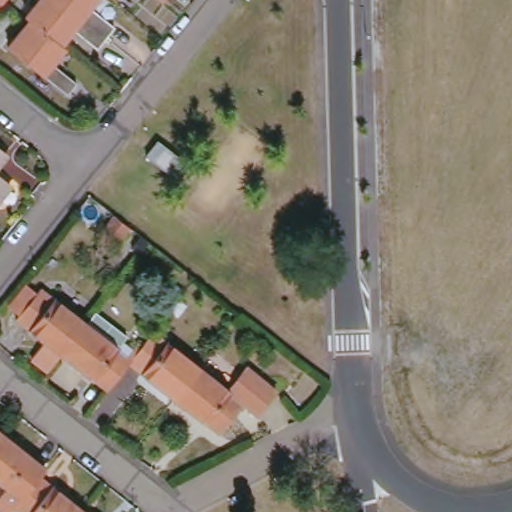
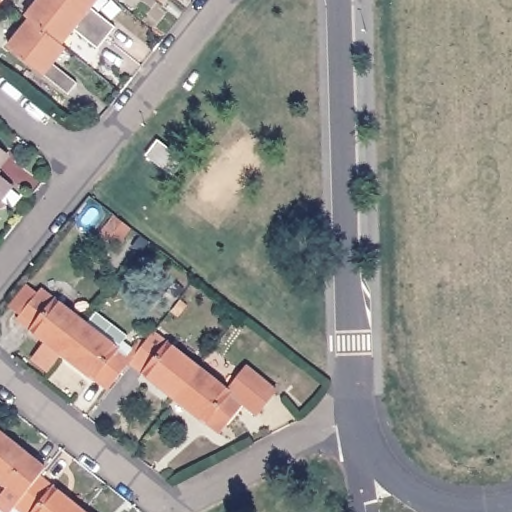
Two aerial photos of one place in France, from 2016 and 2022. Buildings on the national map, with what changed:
unchanged [(0,5),(0,0),(10,0),(10,1),(9,2),(4,8),(0,5)]
unchanged [(27,21),(25,19),(39,0),(57,0),(107,39),(97,50),(73,30),(60,46),(27,21)]
unchanged [(57,0),(96,0),(90,9),(115,28),(107,39),(57,0)]
unchanged [(117,4),(112,0),(119,0),(117,4)]
unchanged [(60,46),(64,49),(51,65),(75,85),(67,95),(7,47),(27,21),(60,46)]
unchanged [(147,157),(159,142),(184,161),(172,176),(147,157)]
unchanged [(14,155),(0,171),(0,144),(14,155)]
unchanged [(17,187),(0,208),(0,172),(17,187)]
unchanged [(130,228),(114,247),(99,237),(114,216),(130,228)]
unchanged [(54,371),(37,358),(50,342),(22,321),(25,316),(15,307),(32,286),(42,294),(45,290),(90,324),(67,355),(54,371)]
unchanged [(112,297),(150,327),(144,335),(151,341),(136,360),(134,362),(112,390),(67,355),(90,324),(112,297)]
unchanged [(151,341),(157,333),(203,368),(180,398),(134,362),(136,360),(151,341)]
unchanged [(203,368),(232,391),(252,366),(272,382),(282,388),(262,413),(260,412),(248,403),(225,434),(180,398),(203,368)]
unchanged [(0,434),(0,425),(4,428),(0,434)]
unchanged [(4,428),(49,465),(44,472),(20,502),(13,510),(0,499),(0,497),(10,482),(0,474),(0,434),(4,428)]
unchanged [(33,512),(20,502),(44,472),(89,508),(86,512),(33,512)]
unchanged [(94,512),(86,512),(89,508),(94,512)]

